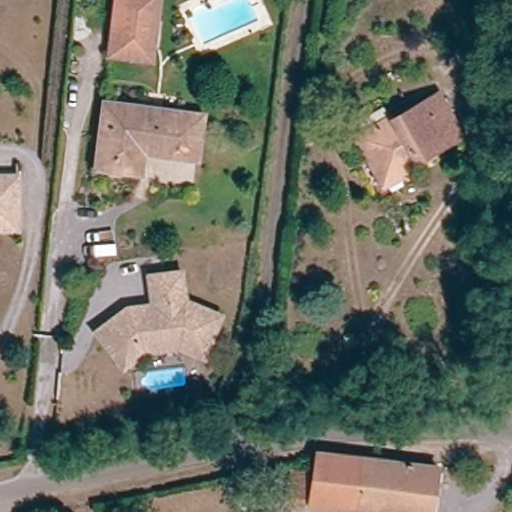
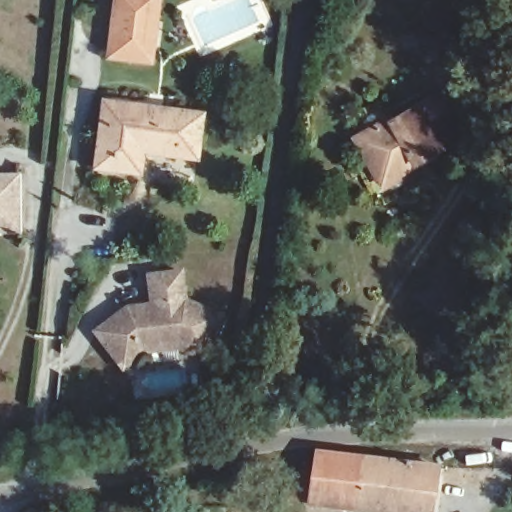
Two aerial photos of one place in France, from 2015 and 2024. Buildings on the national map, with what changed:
unchanged [(106,60),(103,59),(115,0),(157,0),(156,1),(145,67),(106,60)]
unchanged [(415,164),(376,184),(373,181),(362,158),(348,130),(357,126),(388,110),(392,117),(437,93),(446,108),(457,129),(456,132),(444,137),(424,148),(429,157),(415,164)]
unchanged [(197,171),(173,167),(160,166),(161,154),(147,152),(143,177),(101,170),(108,133),(112,104),(127,106),(206,120),(197,171)]
unchanged [(16,184),(20,184),(19,196),(16,243),(0,241),(0,183),(16,184)]
unchanged [(185,348),(149,349),(126,366),(122,361),(99,329),(131,306),(156,304),(154,275),(187,273),(189,302),(226,314),(214,351),(212,357),(185,348)]
unchanged [(429,512),(334,512),(289,506),(291,475),(311,478),(313,464),(314,458),(341,459),(433,468),(429,512)]

